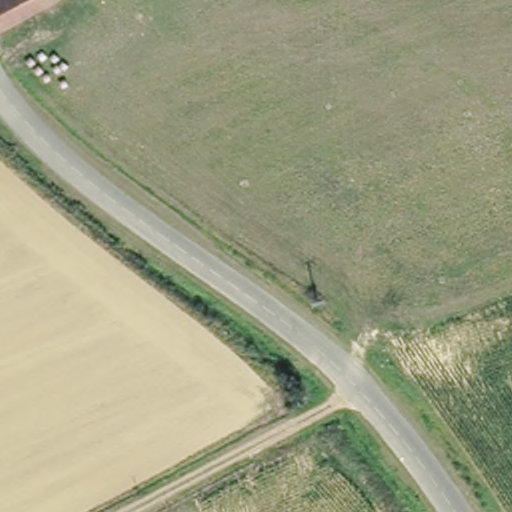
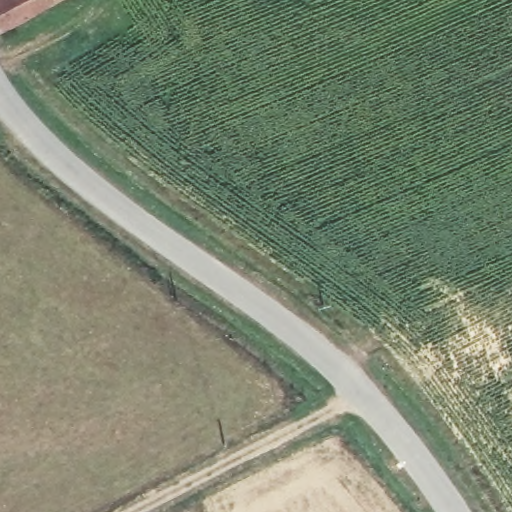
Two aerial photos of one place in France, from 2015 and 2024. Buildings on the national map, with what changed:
unchanged [(0,0),(48,0),(0,27),(0,0)]

